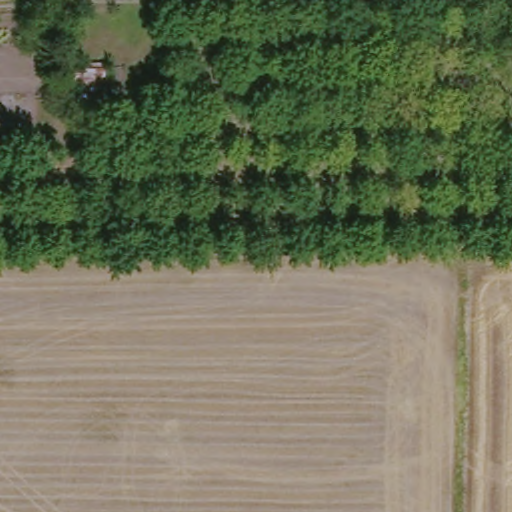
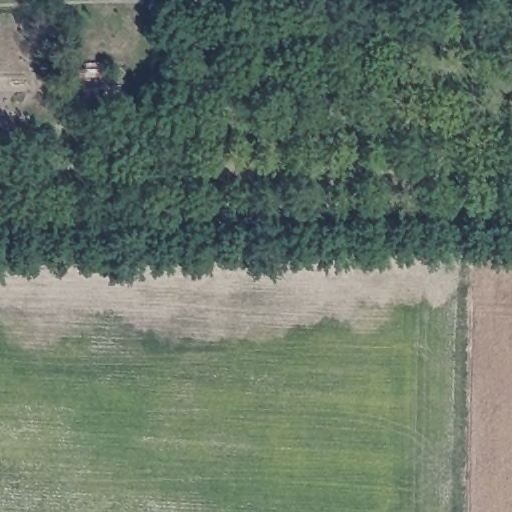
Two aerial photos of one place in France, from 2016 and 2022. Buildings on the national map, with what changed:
unchanged [(113,108),(67,108),(68,69),(112,69),(113,108)]

